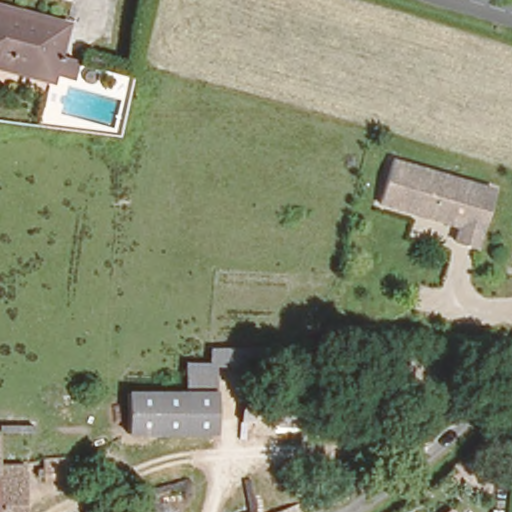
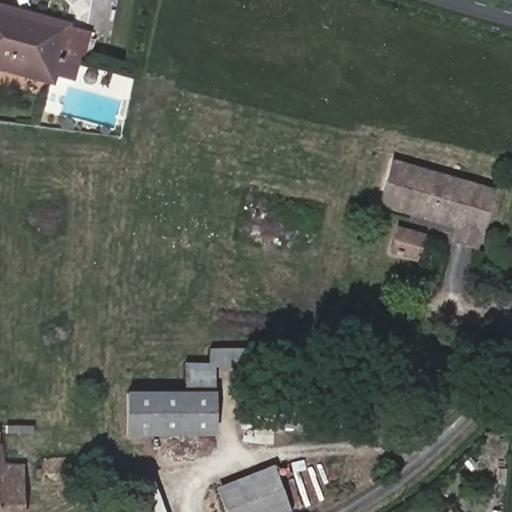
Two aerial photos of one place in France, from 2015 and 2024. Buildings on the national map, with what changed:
unchanged [(0,66),(0,4),(69,19),(56,79),(0,66)]
unchanged [(477,249),(453,244),(456,229),(377,206),(391,165),(493,195),(477,249)]
unchanged [(208,361),(209,346),(265,346),(265,368),(216,369),(216,389),(185,389),(185,361),(208,361)]
unchanged [(461,387),(441,387),(441,376),(461,376),(461,387)]
unchanged [(179,389),(179,433),(131,434),(131,390),(134,390),(179,389)]
unchanged [(215,429),(215,431),(179,433),(179,389),(185,389),(216,389),(215,429)]
unchanged [(22,464),(21,512),(0,512),(0,462),(22,464)]
unchanged [(77,482),(42,483),(42,463),(76,464),(77,482)]
new [(288,512),(226,512),(215,489),(271,465),(291,511),(288,512)]
new [(164,512),(147,512),(149,508),(142,487),(153,481),(164,512)]
unchanged [(448,509),(452,512),(444,512),(448,509)]

